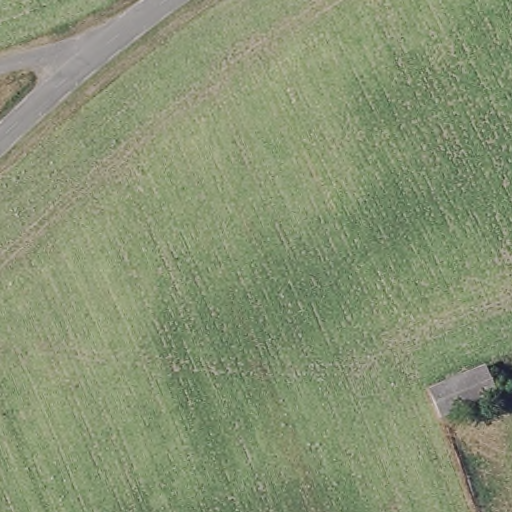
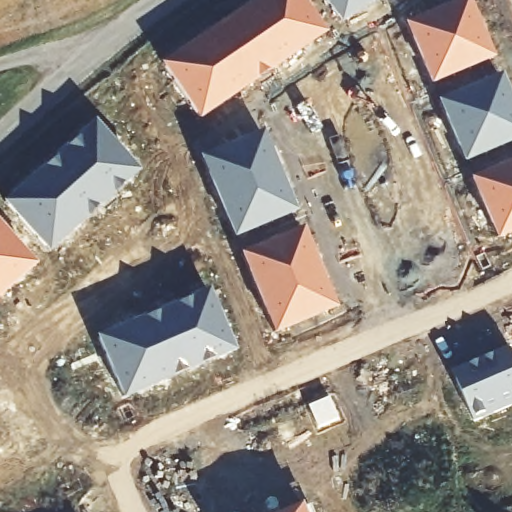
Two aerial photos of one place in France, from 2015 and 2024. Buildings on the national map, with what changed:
new [(198,109),(196,110),(162,54),(239,0),(301,0),(317,28),(257,68),(198,109)]
new [(328,0),(360,0),(338,15),(328,0)]
new [(470,0),(512,103),(512,141),(509,135),(458,155),(436,91),(482,72),(477,55),(429,74),(403,14),(435,0),(470,0)]
new [(12,208),(0,219),(38,262),(0,297),(0,197),(93,111),(138,161),(50,249),(12,208)]
new [(262,122),(295,206),(232,234),(200,151),(262,122)]
new [(495,232),(469,169),(512,150),(512,225),(495,232)]
new [(303,222),(337,304),(273,332),(240,249),(303,222)]
new [(124,396),(97,333),(207,284),(235,348),(124,396)]
new [(512,357),(512,406),(475,423),(452,371),(508,348),(512,357)]
demolished [(482,362),(499,398),(442,419),(426,383),(482,362)]
new [(309,512),(299,512),(307,509),(309,512)]

